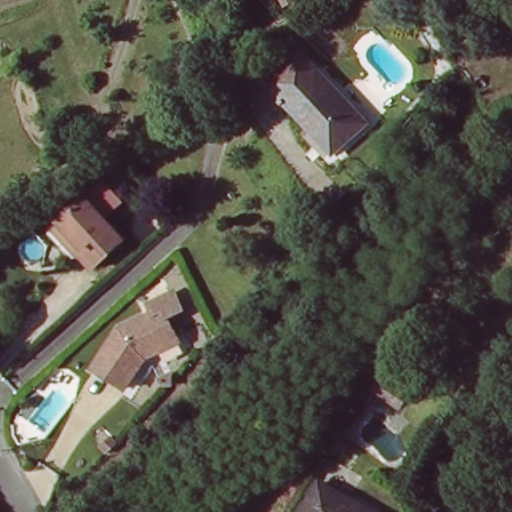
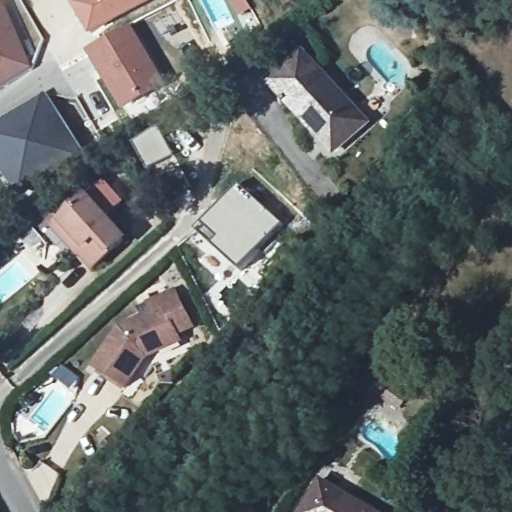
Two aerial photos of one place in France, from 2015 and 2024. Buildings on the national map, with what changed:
new [(35,67),(0,87),(0,1),(3,0),(35,67)]
new [(79,0),(155,0),(91,39),(71,4),(79,0)]
new [(135,27),(171,90),(130,114),(95,51),(135,27)]
unchanged [(324,76),(371,119),(344,148),(317,125),(313,127),(290,108),(271,92),(302,57),(324,76)]
new [(83,161),(23,198),(0,157),(0,119),(41,92),(83,161)]
new [(158,127),(176,156),(150,172),(133,144),(158,127)]
new [(241,184),(281,223),(241,269),(198,232),(241,184)]
unchanged [(50,230),(60,220),(88,195),(128,237),(98,264),(83,249),(76,256),(50,230)]
unchanged [(131,387),(97,366),(123,326),(168,306),(183,333),(186,342),(153,358),(150,360),(131,387)]
unchanged [(339,498),(362,512),(301,512),(319,485),(339,498)]

